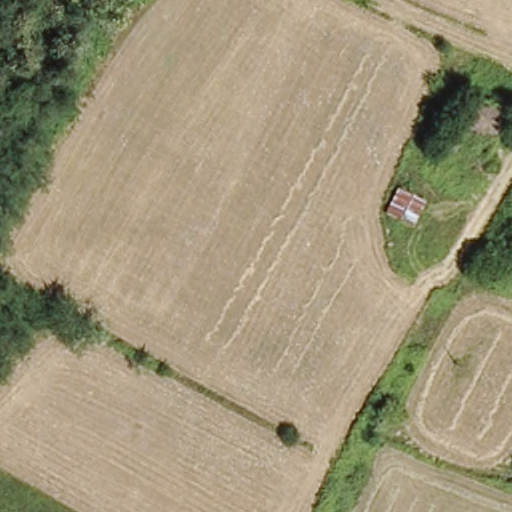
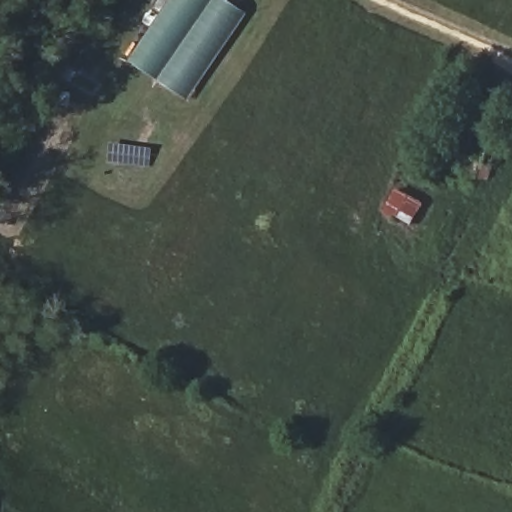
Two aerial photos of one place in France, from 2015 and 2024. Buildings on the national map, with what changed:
new [(167,84),(131,59),(170,0),(224,0),(247,16),(189,99),(181,94),(166,87),(167,84)]
unchanged [(479,165),(472,161),(463,179),(449,171),(458,153),(448,147),(477,94),(507,111),(479,165)]
unchanged [(417,226),(387,215),(397,187),(427,198),(417,226)]

